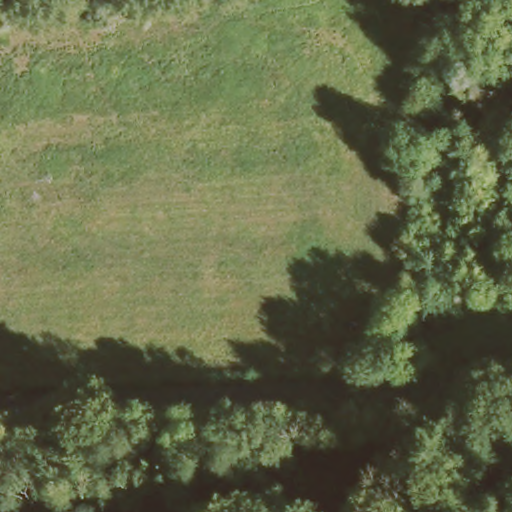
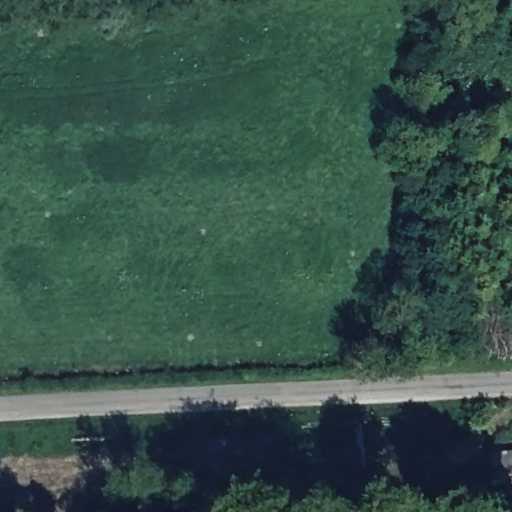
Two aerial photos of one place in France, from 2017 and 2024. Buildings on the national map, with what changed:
unchanged [(512,454),(512,473),(492,473),(492,454),(512,454)]

